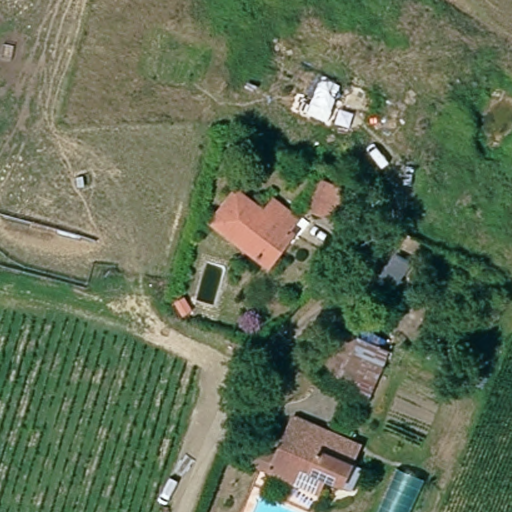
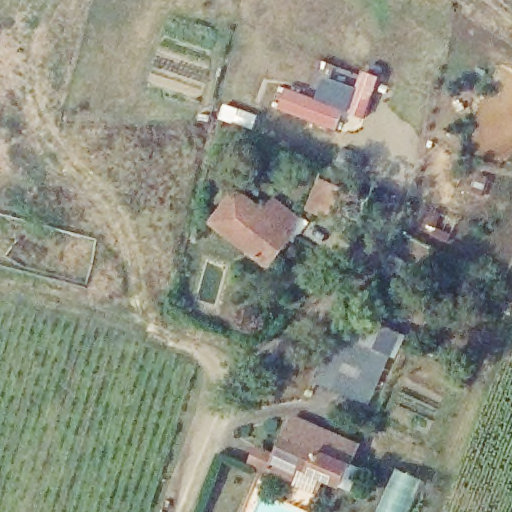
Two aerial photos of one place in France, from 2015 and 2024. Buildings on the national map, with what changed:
new [(313,96),(321,73),(359,87),(364,71),(380,76),(364,118),(351,113),(345,110),(337,130),(277,109),(284,87),(313,96)]
unchanged [(347,195),(340,225),(308,217),(315,187),(347,195)]
unchanged [(280,265),(269,259),(215,228),(236,191),(267,209),(275,194),(304,210),(296,224),(302,228),(280,265)]
unchanged [(338,334),(383,349),(372,384),(326,369),(338,334)]
unchanged [(257,446),(275,454),(291,416),(355,443),(346,463),(357,467),(348,486),(320,474),(314,489),(268,470),(250,462),(257,446)]

